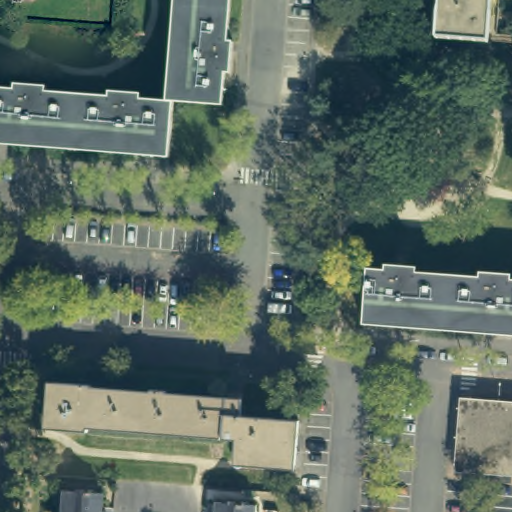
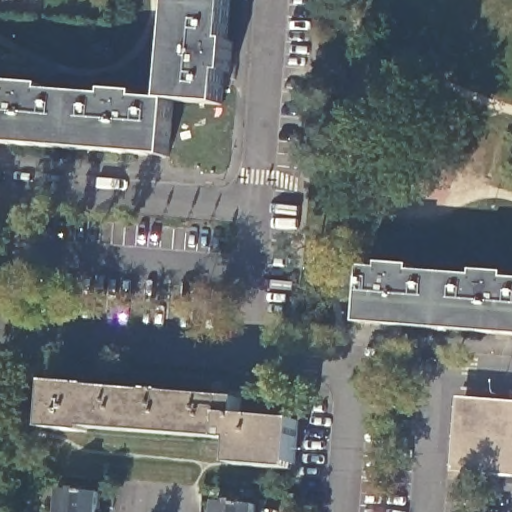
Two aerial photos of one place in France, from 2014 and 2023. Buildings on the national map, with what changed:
unchanged [(233,44),(231,68),(230,75),(225,75),(222,105),(173,101),(168,101),(168,96),(168,95),(169,84),(176,0),(230,0),(227,44),(233,44)]
demolished [(488,45),(436,40),(439,0),(512,0),(512,43),(488,42),(488,45)]
unchanged [(173,101),(168,156),(139,154),(0,143),(0,88),(15,90),(15,84),(46,86),(46,92),(109,96),(109,91),(141,93),(141,99),(168,101),(173,101)]
unchanged [(361,324),(366,270),(366,269),(383,270),(383,265),(416,267),(415,272),(478,277),(478,272),(510,275),(510,280),(512,280),(512,335),(421,328),(361,324)]
unchanged [(233,466),(235,442),(221,441),(221,439),(89,429),(89,432),(45,429),(50,385),(50,382),(92,385),(92,387),(151,392),(152,391),(167,392),(167,393),(243,399),(242,410),(298,414),(294,471),(233,466)]
unchanged [(473,403),(512,406),(512,465),(468,462),(473,403)]
unchanged [(61,489),(101,492),(99,512),(60,512),(61,489)]
unchanged [(216,502),(256,506),(255,512),(215,512),(216,502)]

